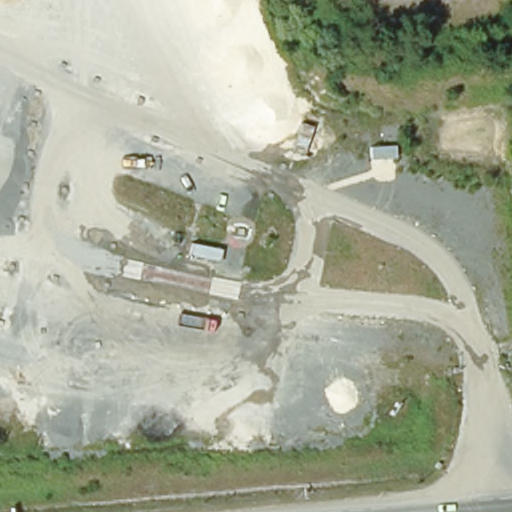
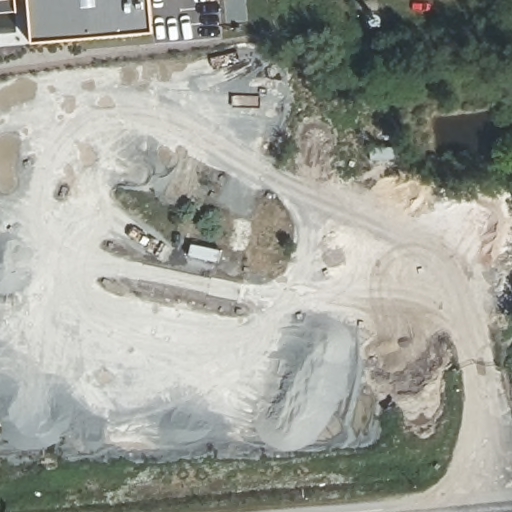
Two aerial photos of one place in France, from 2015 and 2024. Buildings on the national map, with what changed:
new [(19,11),(0,12),(0,0),(18,0),(19,11)]
new [(159,26),(37,37),(34,0),(156,0),(159,26)]

